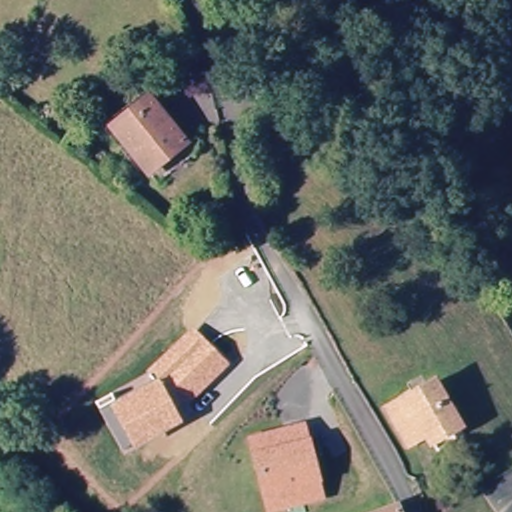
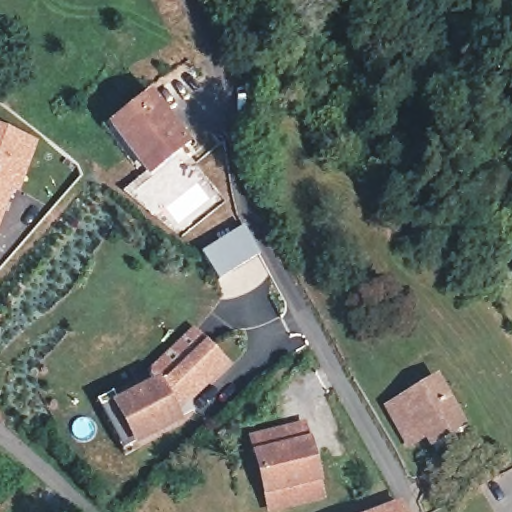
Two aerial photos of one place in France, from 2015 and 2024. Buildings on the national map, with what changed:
unchanged [(188,146),(151,177),(114,133),(152,101),(188,146)]
new [(39,143),(20,195),(12,193),(0,226),(0,128),(39,143)]
new [(244,228),(261,256),(219,281),(202,253),(244,228)]
unchanged [(112,394),(116,402),(157,381),(149,373),(191,326),(231,365),(179,414),(184,424),(120,454),(94,404),(112,394)]
unchanged [(422,441),(418,434),(396,398),(426,380),(448,416),(452,423),(422,441)]
unchanged [(254,436),(304,424),(321,495),(312,497),(292,501),(270,507),(266,490),(254,436)]
unchanged [(401,504),(404,512),(378,512),(401,504)]

